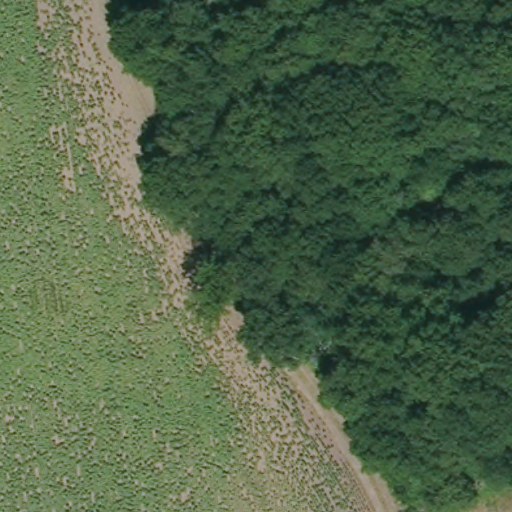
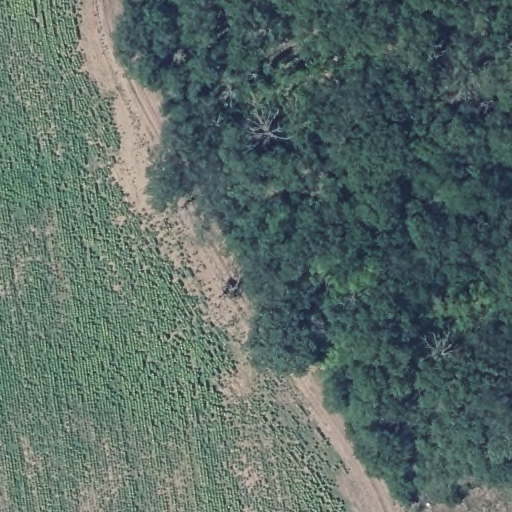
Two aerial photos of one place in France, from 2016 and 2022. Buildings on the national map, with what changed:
[]

